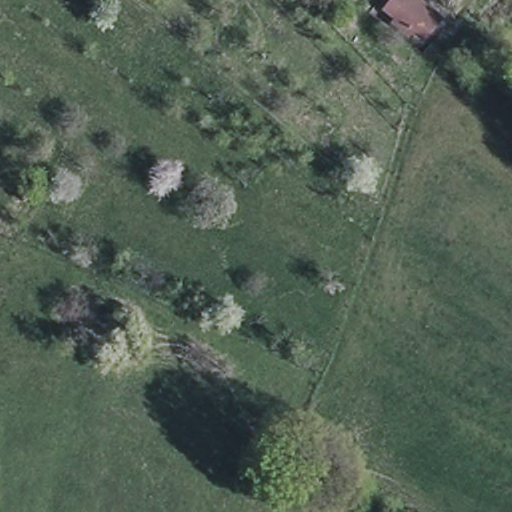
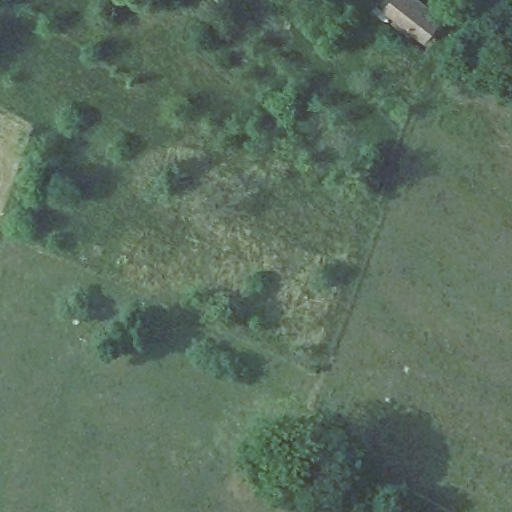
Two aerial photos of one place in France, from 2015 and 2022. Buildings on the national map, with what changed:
unchanged [(388,7),(394,0),(422,0),(443,17),(438,23),(426,38),(416,30),(413,35),(395,20),(399,16),(388,7)]

